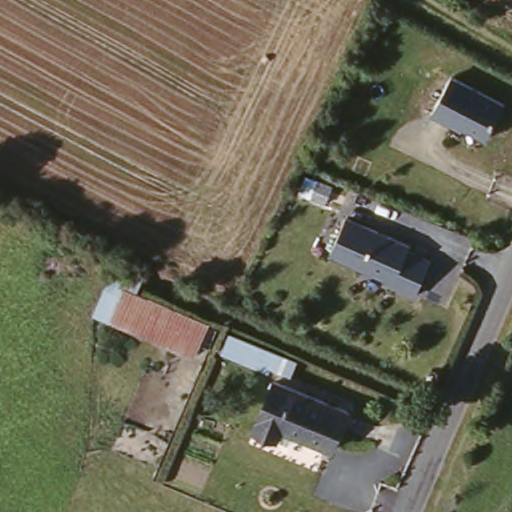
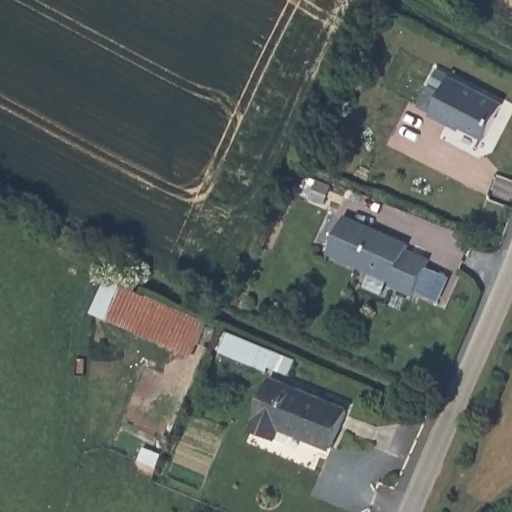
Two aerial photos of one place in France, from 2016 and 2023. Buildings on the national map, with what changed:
unchanged [(480,145),(427,119),(445,77),(501,107),(480,145)]
unchanged [(412,295),(325,258),(342,217),(410,244),(407,252),(428,262),(412,295)]
unchanged [(136,279),(133,287),(211,321),(194,359),(89,312),(109,267),(136,279)]
unchanged [(272,362),(223,342),(228,331),(278,350),(272,362)]
unchanged [(331,446),(292,431),(287,441),(252,427),(272,379),(347,407),(331,446)]

